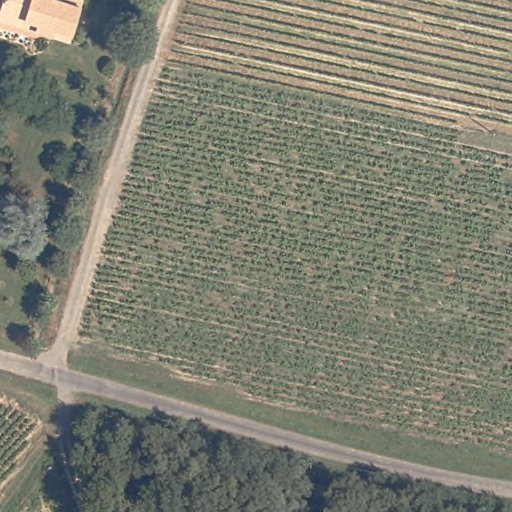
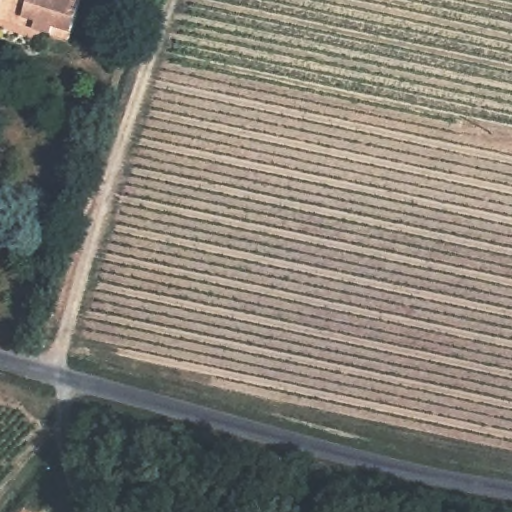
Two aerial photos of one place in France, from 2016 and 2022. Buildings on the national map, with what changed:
unchanged [(70,38),(0,17),(0,4),(1,0),(82,0),(70,38)]

